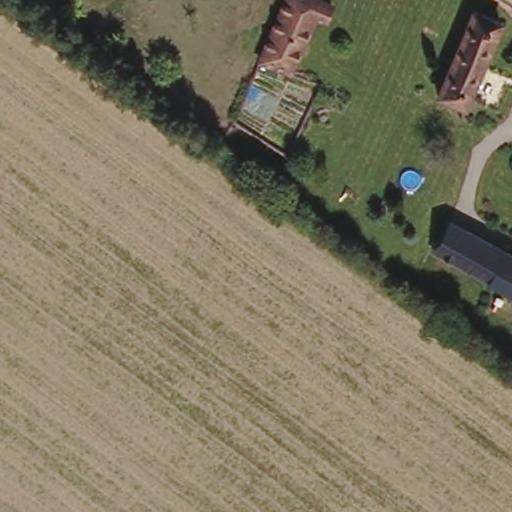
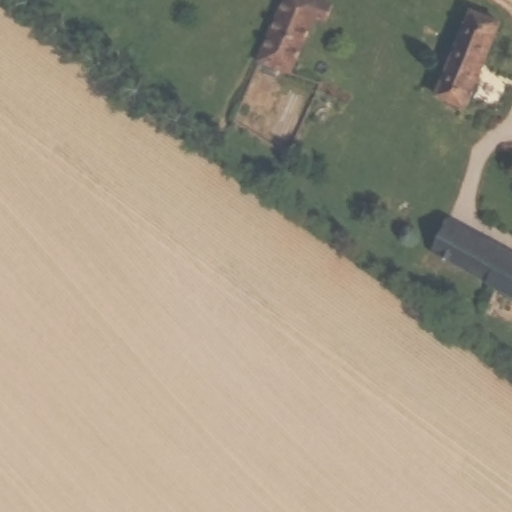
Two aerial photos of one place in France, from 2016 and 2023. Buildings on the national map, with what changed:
unchanged [(322,11),(311,6),(286,64),(255,52),(277,0),(326,0),(322,11)]
unchanged [(461,104),(432,93),(468,5),(496,17),(461,104)]
unchanged [(450,223),(481,239),(465,269),(433,252),(450,223)]
unchanged [(512,255),(512,294),(465,269),(481,239),(512,255)]

